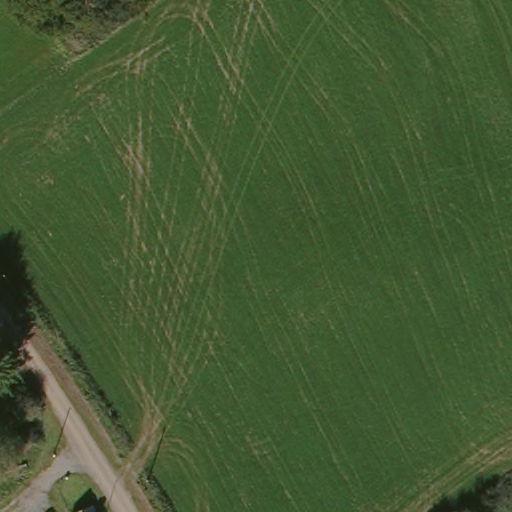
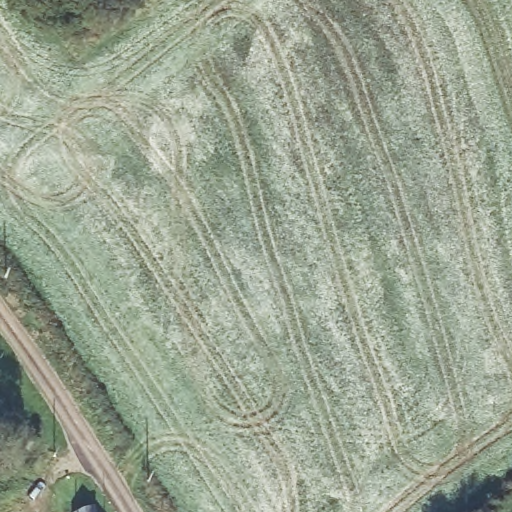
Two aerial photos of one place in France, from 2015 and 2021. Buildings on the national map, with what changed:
unchanged [(90,512),(73,512),(87,506),(90,512)]

